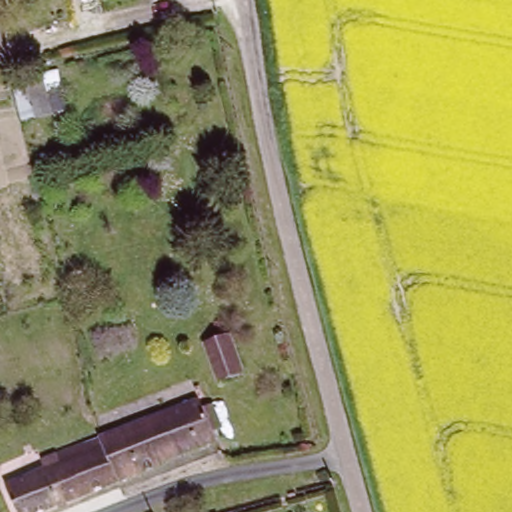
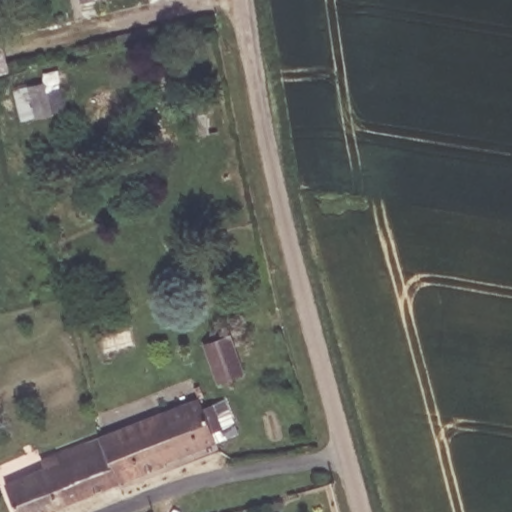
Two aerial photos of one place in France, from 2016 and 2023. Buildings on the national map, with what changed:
unchanged [(80,2),(80,0),(86,0),(80,2)]
unchanged [(0,74),(0,26),(10,72),(0,74)]
unchanged [(47,84),(53,111),(39,114),(32,88),(47,84)]
unchanged [(236,374),(216,382),(200,345),(222,340),(236,374)]
unchanged [(181,416),(190,412),(200,434),(190,438),(194,446),(160,461),(162,468),(115,485),(98,439),(177,408),(181,416)]
unchanged [(115,485),(46,512),(18,512),(8,486),(45,472),(40,463),(98,439),(115,485)]

